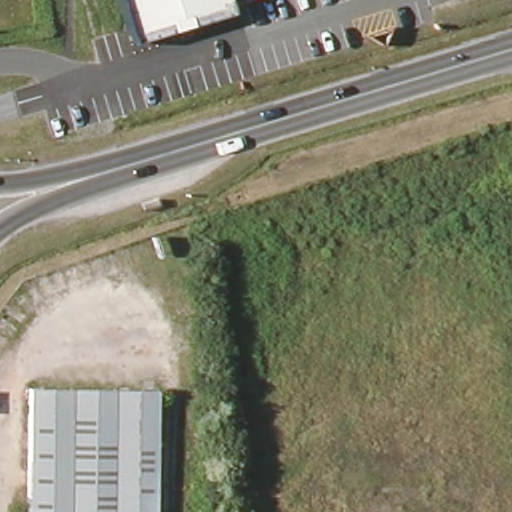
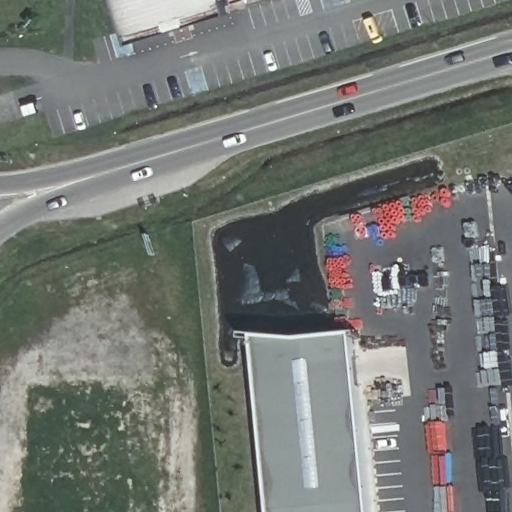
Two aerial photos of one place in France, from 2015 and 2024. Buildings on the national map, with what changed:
unchanged [(222,6),(128,37),(116,0),(220,0),(222,6)]
unchanged [(234,3),(233,0),(243,0),(234,3)]
new [(352,335),(369,512),(269,512),(253,337),(297,342),(352,335)]
demolished [(159,394),(156,512),(29,512),(30,393),(159,394)]

